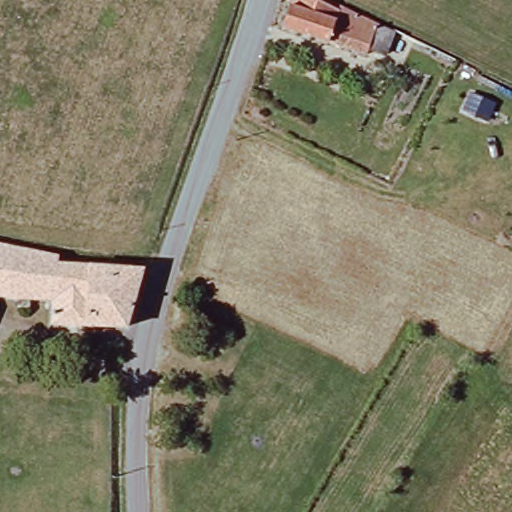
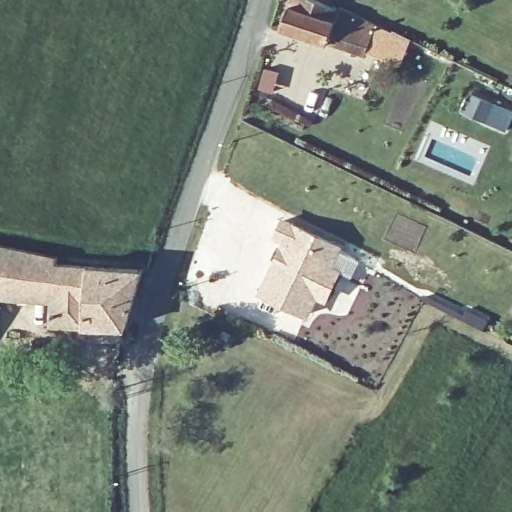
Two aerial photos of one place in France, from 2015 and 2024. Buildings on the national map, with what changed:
unchanged [(347,64),(269,26),(281,0),(313,0),(332,9),(333,4),(383,29),(367,65),(352,58),(347,64)]
new [(327,297),(318,292),(308,313),(262,290),(287,239),(277,234),(285,218),(341,246),(331,267),(340,272),(327,297)]
unchanged [(52,325),(54,303),(0,298),(0,245),(58,257),(57,264),(137,268),(130,329),(52,325)]
unchanged [(233,336),(239,326),(247,332),(241,340),(233,336)]

